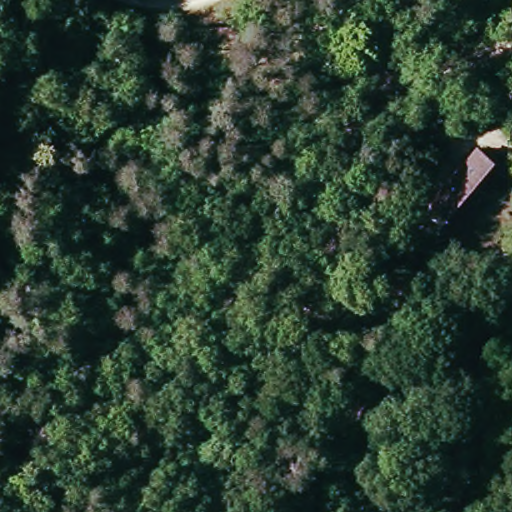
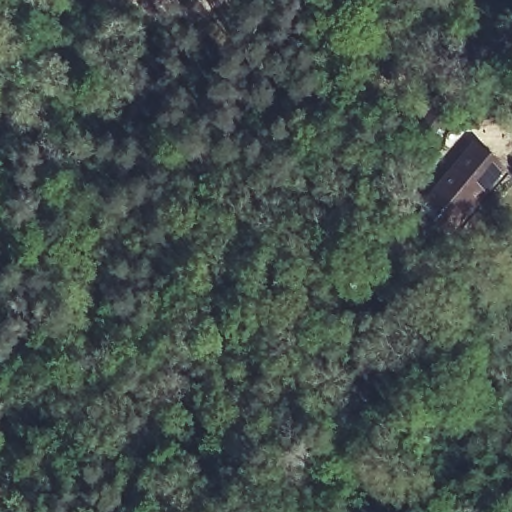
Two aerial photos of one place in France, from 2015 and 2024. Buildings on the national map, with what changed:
unchanged [(449,111),(460,118),(448,134),(437,126),(449,111)]
unchanged [(450,217),(455,208),(442,196),(485,139),(512,158),(462,226),(450,217)]

